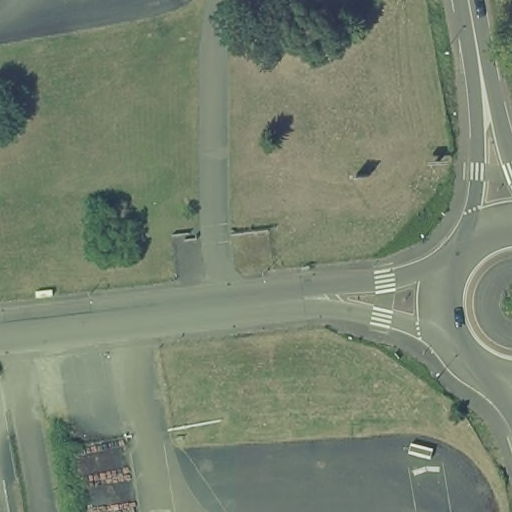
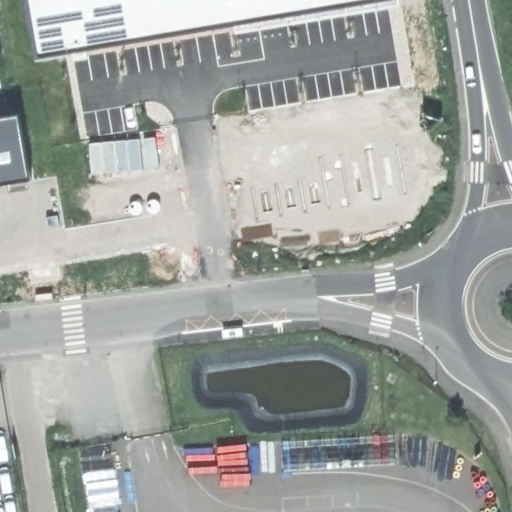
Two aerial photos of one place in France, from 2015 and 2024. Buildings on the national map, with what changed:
new [(235,36),(232,25),(39,57),(29,0),(401,0),(402,7),(235,36)]
new [(20,115),(32,182),(0,187),(0,119),(20,115)]
new [(155,136),(160,167),(90,174),(88,142),(155,136)]

